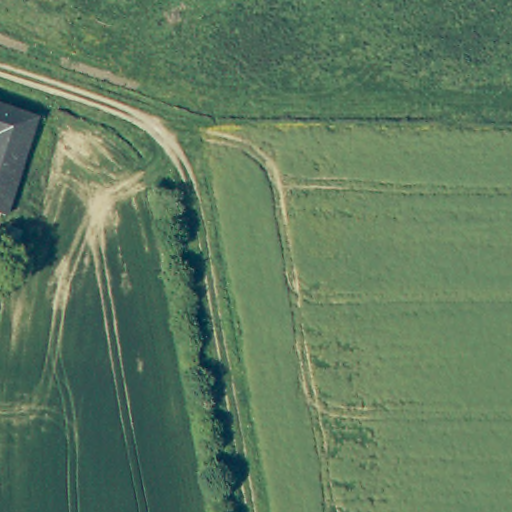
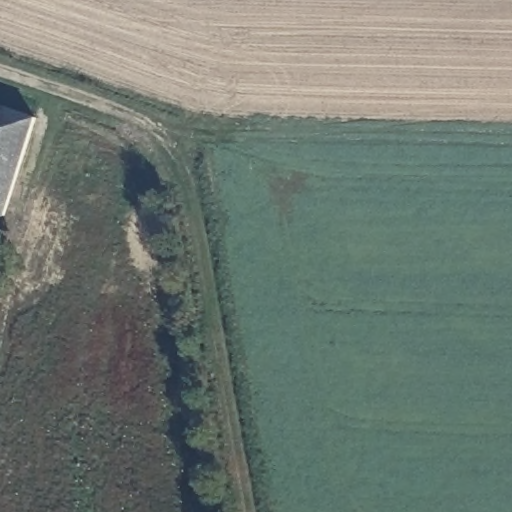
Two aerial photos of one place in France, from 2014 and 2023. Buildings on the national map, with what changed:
unchanged [(2,211),(0,210),(0,102),(33,113),(2,211)]

